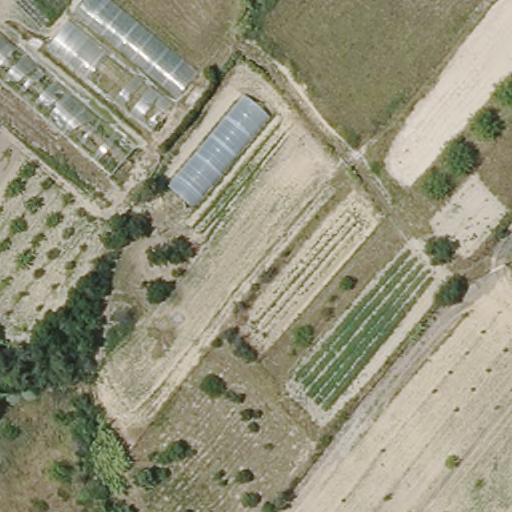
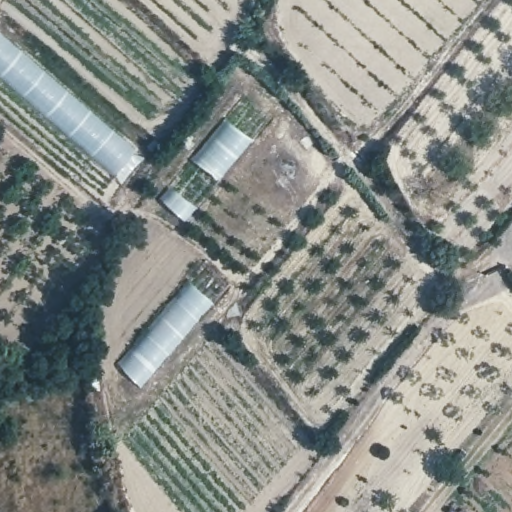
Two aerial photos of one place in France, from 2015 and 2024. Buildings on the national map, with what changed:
demolished [(125,0),(203,62),(157,123),(52,39),(85,0),(125,0)]
unchanged [(135,153),(110,178),(0,80),(0,36),(135,153)]
unchanged [(245,96),(269,116),(192,209),(168,188),(245,96)]
new [(226,285),(138,385),(116,362),(203,261),(226,285)]

